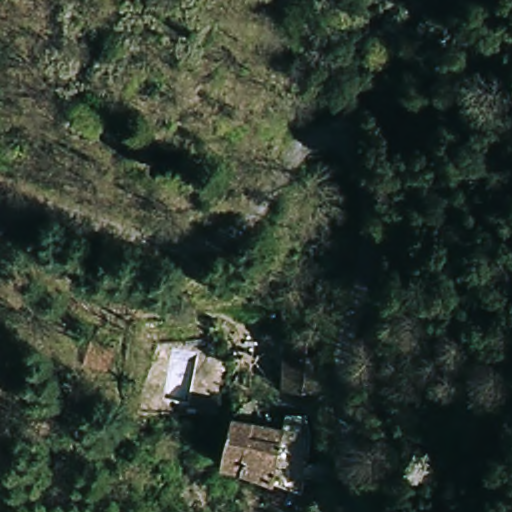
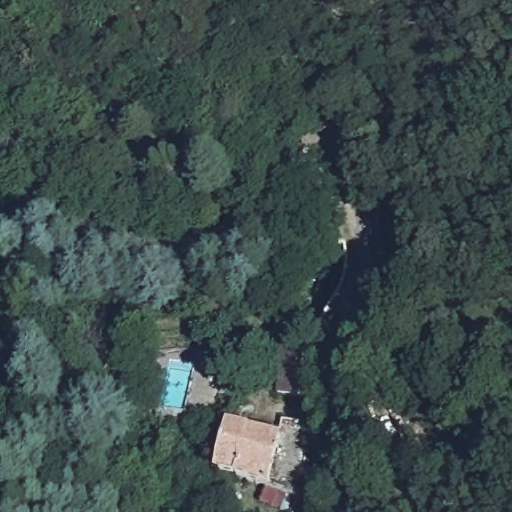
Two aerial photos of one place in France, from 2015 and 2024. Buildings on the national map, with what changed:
unchanged [(285,323),(299,319),(303,393),(282,394),(279,325),(285,323)]
unchanged [(274,419),(279,398),(303,399),(308,423),(311,454),(311,486),(267,478),(215,469),(225,413),(274,419)]
unchanged [(290,509),(293,493),(214,478),(215,469),(267,478),(311,486),(308,512),(306,512),(290,509)]

